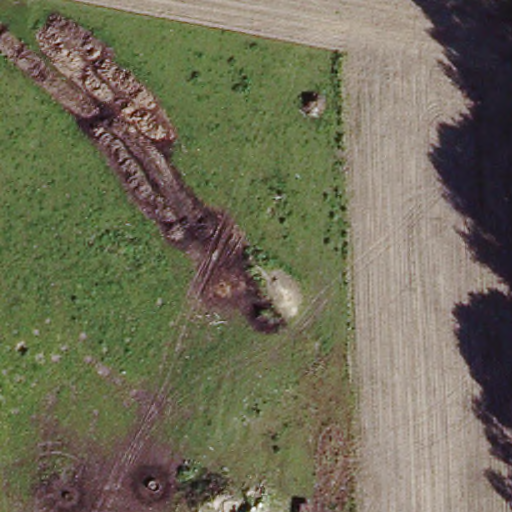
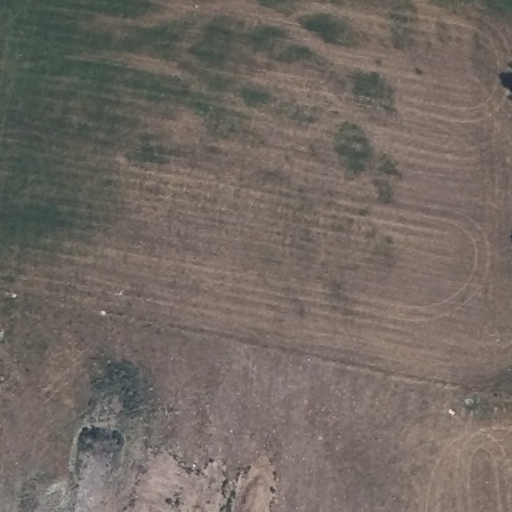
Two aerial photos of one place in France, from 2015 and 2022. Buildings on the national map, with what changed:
[]

